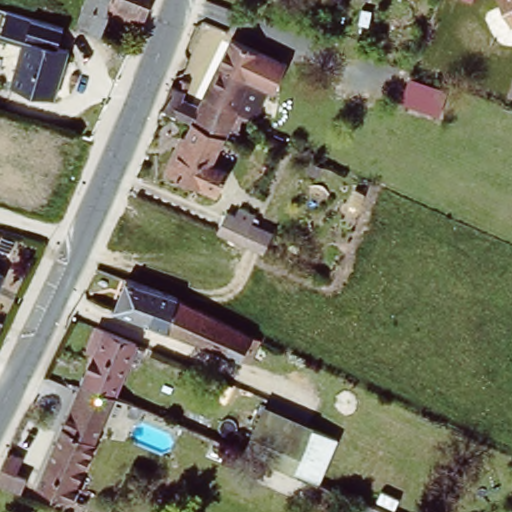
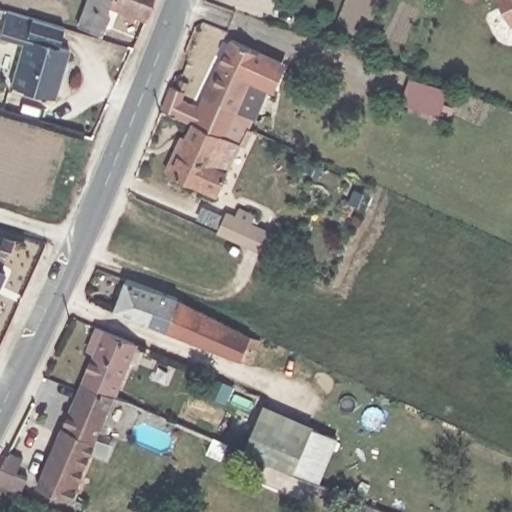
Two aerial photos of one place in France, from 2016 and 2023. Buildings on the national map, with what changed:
unchanged [(85,7),(81,6),(83,0),(150,0),(145,15),(112,4),(102,31),(77,25),(85,7)]
unchanged [(501,0),(512,0),(512,23),(501,0)]
unchanged [(62,50),(50,100),(4,89),(16,40),(62,50)]
unchanged [(254,84),(227,140),(208,132),(194,127),(177,120),(180,116),(167,111),(175,91),(176,89),(181,92),(185,84),(193,88),(186,103),(202,110),(233,45),(260,57),(262,52),(267,55),(266,59),(280,65),(268,90),(254,84)]
unchanged [(208,132),(227,140),(212,169),(230,177),(221,198),(171,176),(178,160),(175,159),(184,141),(187,142),(194,127),(208,132)]
unchanged [(217,224),(226,206),(235,210),(237,204),(255,212),(245,236),(217,224)]
unchanged [(0,288),(0,266),(8,269),(0,288)]
unchanged [(172,295),(259,339),(249,361),(112,309),(125,279),(172,295)]
unchanged [(93,347),(89,346),(99,324),(137,340),(115,391),(81,377),(93,347)]
unchanged [(81,377),(115,391),(132,398),(122,419),(105,411),(85,457),(98,463),(95,471),(81,464),(80,466),(75,478),(78,479),(84,467),(92,471),(87,483),(89,484),(82,499),(54,486),(37,479),(77,385),(81,377)]
unchanged [(336,440),(315,490),(244,458),(264,407),(336,440)]
unchanged [(0,467),(8,449),(22,456),(16,471),(27,477),(21,490),(0,481),(0,467)]

